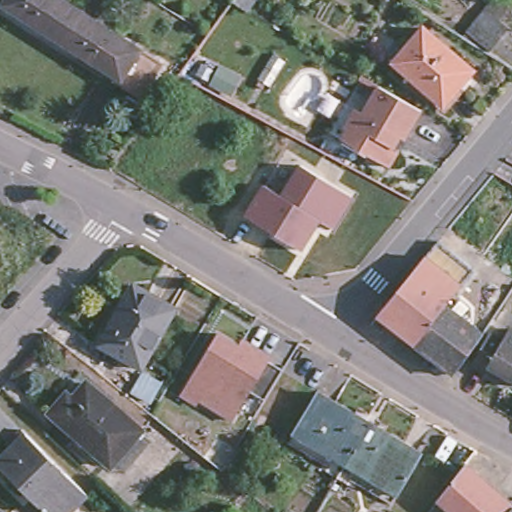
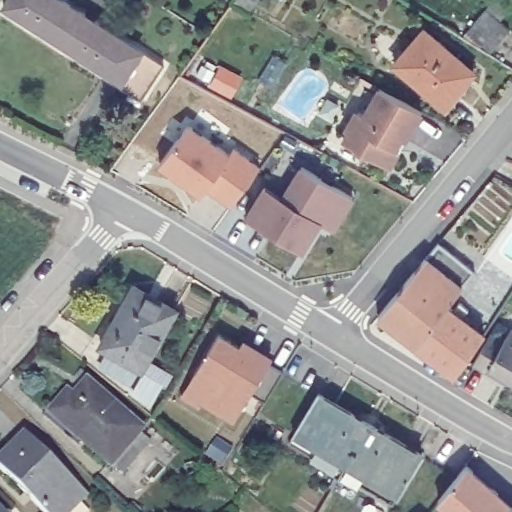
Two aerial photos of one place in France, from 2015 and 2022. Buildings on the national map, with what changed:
unchanged [(7,0),(65,0),(83,12),(63,44),(3,5),(7,0)]
unchanged [(253,0),(246,9),(232,1),(232,0),(253,0)]
unchanged [(510,26),(490,48),(468,30),(487,7),(510,26)]
unchanged [(83,12),(141,51),(121,82),(63,44),(83,12)]
unchanged [(473,71),(444,105),(393,61),(423,27),(473,71)]
unchanged [(141,51),(164,66),(140,101),(117,87),(121,82),(141,51)]
new [(242,79),(231,101),(208,89),(218,67),(242,79)]
unchanged [(400,146),(390,166),(368,154),(368,155),(355,147),(355,146),(354,145),(343,139),(348,130),(348,122),(350,119),(352,115),(360,111),(364,112),(379,86),(421,110),(400,146)]
new [(230,157),(235,151),(260,170),(232,212),(207,194),(201,202),(158,170),(187,129),(230,157)]
unchanged [(262,186),(281,196),(299,170),(350,199),(333,231),(318,224),(301,251),(245,217),(262,186)]
unchanged [(444,242),(479,271),(467,287),(454,276),(440,296),(435,292),(416,277),(415,277),(444,242)]
unchanged [(435,292),(402,331),(384,317),(416,277),(435,292)]
unchanged [(137,287),(176,312),(142,371),(101,347),(137,287)]
unchanged [(435,292),(440,296),(452,306),(420,346),(402,331),(435,292)]
unchanged [(452,306),(490,335),(460,375),(420,346),(452,306)]
unchanged [(512,336),(512,378),(511,377),(508,382),(478,363),(496,332),(510,341),(512,336)]
unchanged [(230,421),(195,400),(203,387),(188,378),(215,334),(236,347),(237,345),(240,340),(268,357),(266,362),(280,371),(270,387),(261,401),(247,392),(230,421)]
unchanged [(65,394),(71,399),(85,383),(140,429),(110,465),(48,413),(65,394)]
unchanged [(347,464),(295,434),(320,392),(371,422),(347,464)]
unchanged [(421,452),(398,493),(347,464),(371,422),(421,452)]
unchanged [(23,492),(0,469),(0,461),(11,450),(7,445),(20,431),(86,495),(80,501),(73,501),(63,511),(63,512),(43,512),(30,500),(32,498),(25,492),(23,492)]
unchanged [(432,505),(465,467),(512,506),(512,511),(511,512),(441,512),(432,505)]
unchanged [(2,512),(0,512),(0,510),(2,512)]
unchanged [(512,511),(512,512),(511,512),(512,511)]

